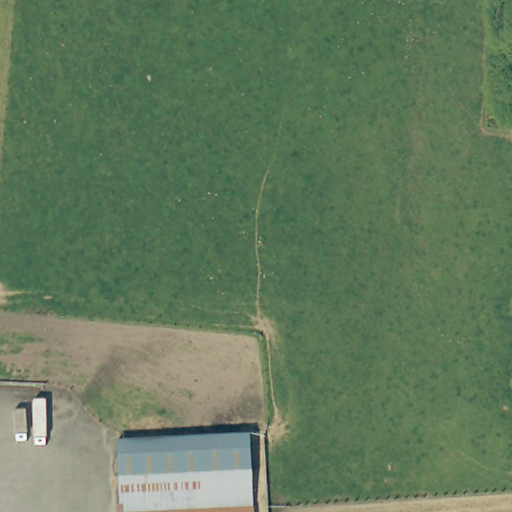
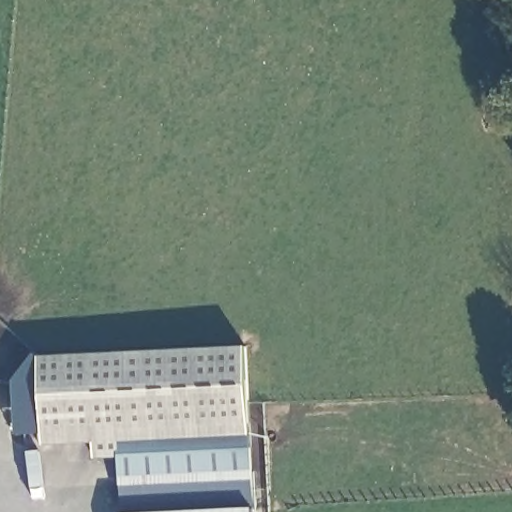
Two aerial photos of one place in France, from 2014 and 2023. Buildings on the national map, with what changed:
new [(246,345),(256,512),(121,512),(118,459),(93,459),(93,443),(43,446),(38,356),(246,345)]
demolished [(246,463),(249,504),(113,509),(113,470),(246,463)]
demolished [(113,509),(249,504),(249,512),(113,512),(113,509)]

